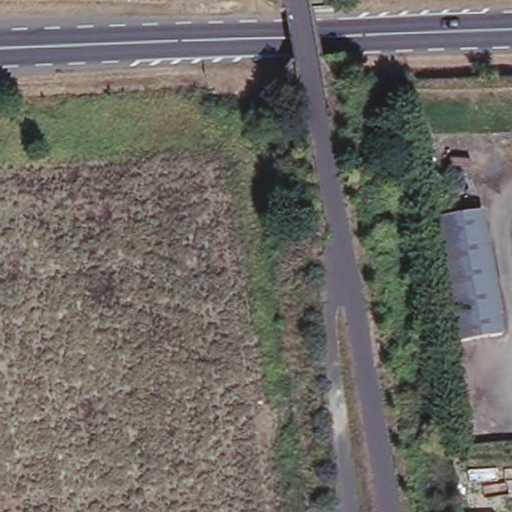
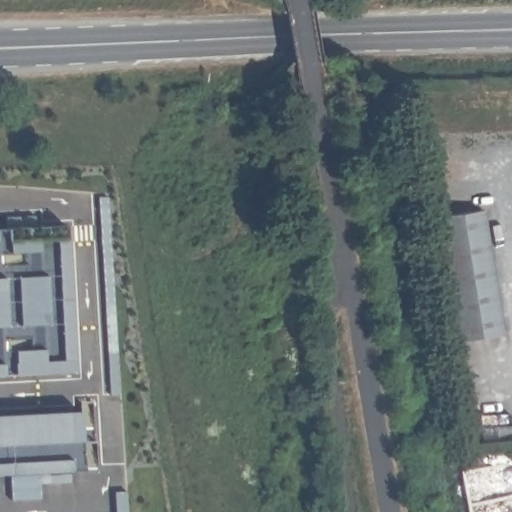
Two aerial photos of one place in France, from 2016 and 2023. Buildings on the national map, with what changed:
unchanged [(485,208),(505,333),(460,340),(440,215),(485,208)]
new [(78,381),(0,386),(0,227),(69,222),(78,381)]
new [(85,471),(0,477),(0,417),(80,412),(85,471)]
unchanged [(480,474),(512,473),(512,505),(481,505),(480,474)]

